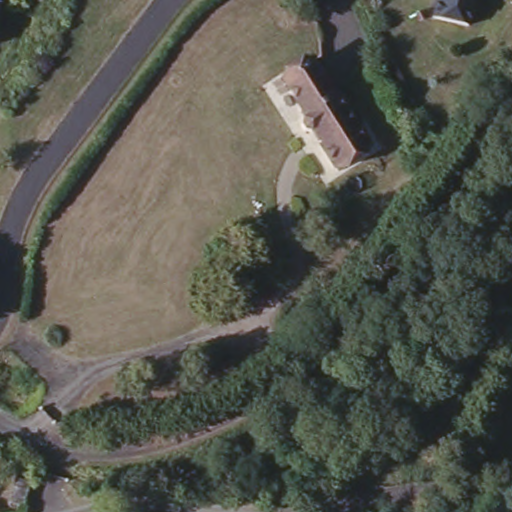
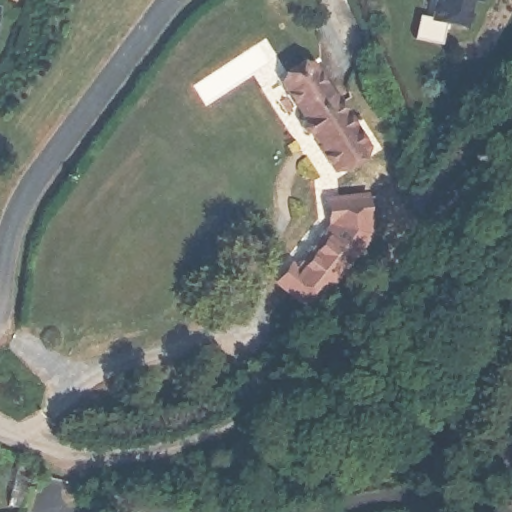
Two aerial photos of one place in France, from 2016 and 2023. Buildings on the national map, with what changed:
unchanged [(476,2),(470,27),(425,20),(428,0),(494,0),(493,5),(476,2)]
unchanged [(319,64),(341,102),(344,100),(373,150),(338,170),(318,134),(313,137),(309,137),(306,136),(304,134),(302,132),(302,130),(302,127),(304,124),(306,121),(308,120),(287,83),(319,64)]
new [(384,196),(385,217),(372,219),(371,243),(318,311),(287,283),(331,228),(332,199),(384,196)]
unchanged [(34,459),(25,501),(14,498),(22,457),(34,459)]

